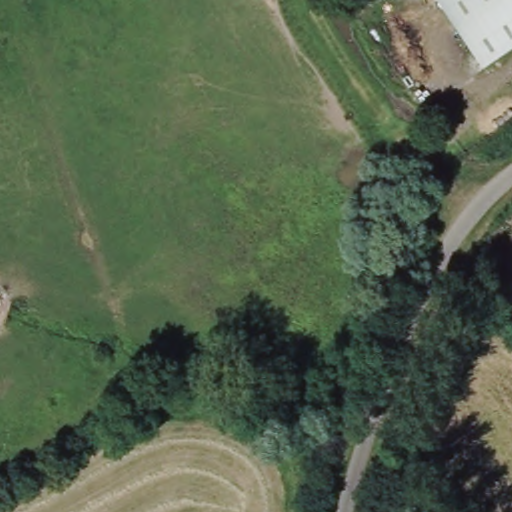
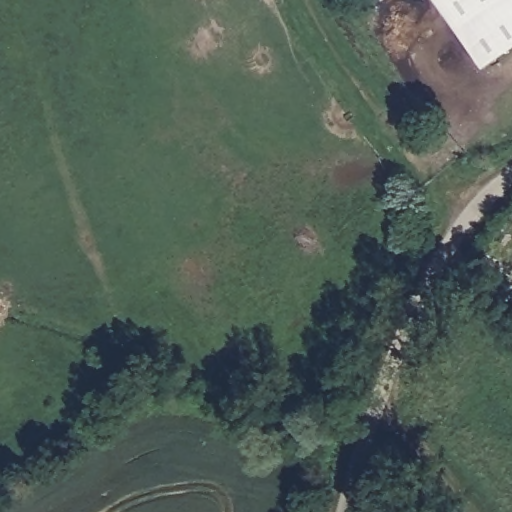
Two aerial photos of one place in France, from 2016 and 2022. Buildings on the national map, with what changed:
unchanged [(512,0),(512,44),(481,64),(439,0),(512,0)]

